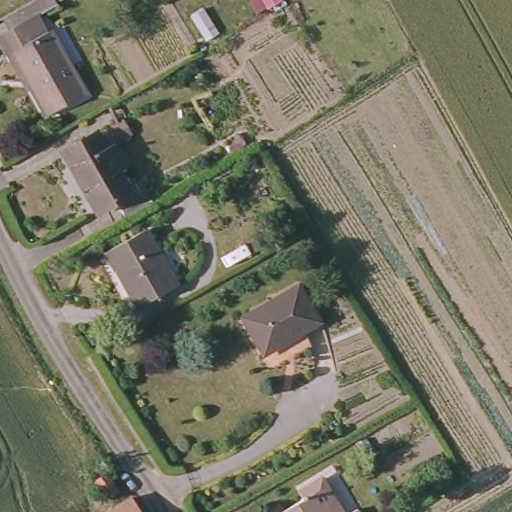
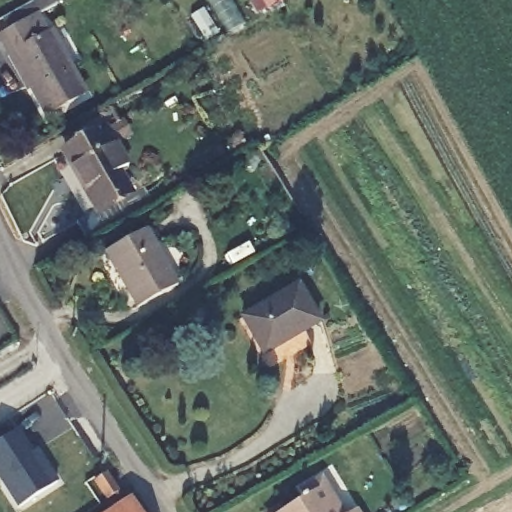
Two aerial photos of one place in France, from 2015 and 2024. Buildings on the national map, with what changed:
unchanged [(46,34),(50,32),(85,96),(48,117),(13,55),(9,57),(0,41),(0,38),(9,32),(2,20),(27,6),(35,18),(37,17),(46,34)]
unchanged [(107,171),(119,192),(132,185),(140,201),(113,216),(104,199),(84,210),(52,153),(86,134),(107,122),(115,136),(102,142),(115,166),(107,171)]
unchanged [(146,230),(177,286),(137,308),(106,252),(146,230)]
unchanged [(298,287),(319,324),(262,356),(242,319),(298,287)]
new [(37,450),(57,483),(19,507),(0,478),(0,441),(17,430),(32,453),(37,450)]
unchanged [(94,481),(106,473),(118,492),(106,500),(94,481)]
unchanged [(302,500),(299,494),(321,481),(341,512),(284,512),(302,500)]
unchanged [(132,503),(137,512),(118,512),(132,503)]
unchanged [(356,511),(357,512),(353,512),(356,511)]

